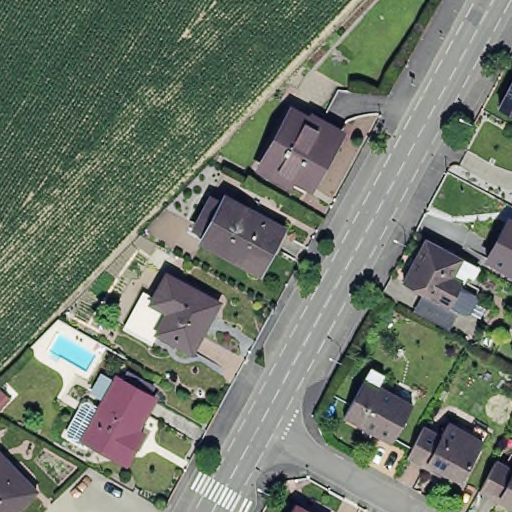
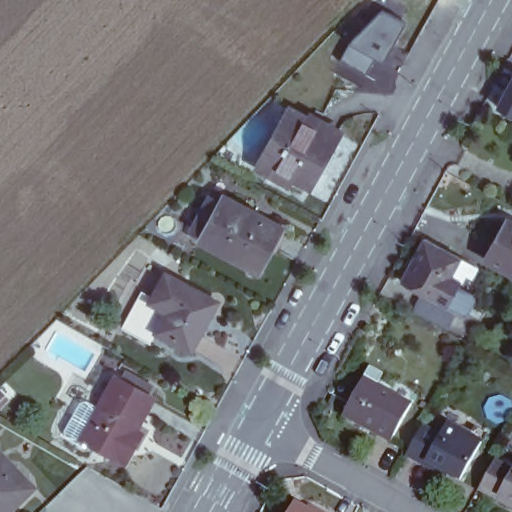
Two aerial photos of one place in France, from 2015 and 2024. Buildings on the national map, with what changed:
new [(402,19),(383,59),(372,56),(363,71),(335,58),(343,40),(383,7),(402,19)]
unchanged [(498,112),(512,86),(512,120),(498,112)]
unchanged [(291,176),(288,183),(274,176),(259,167),(291,110),(310,121),(312,117),(339,132),(309,186),(291,176)]
unchanged [(201,235),(204,230),(221,198),(224,193),(281,223),(258,266),(201,235)]
unchanged [(512,225),(512,276),(480,259),(502,219),(512,225)]
unchanged [(456,276),(466,282),(452,306),(407,281),(430,238),(465,257),(456,276)]
unchanged [(218,302),(191,352),(156,332),(166,312),(149,302),(152,297),(165,273),(218,302)]
unchanged [(91,423),(86,420),(110,376),(148,398),(131,430),(136,433),(131,443),(119,462),(81,441),(91,423)]
unchanged [(366,378),(380,385),(391,391),(389,397),(412,410),(391,447),(343,421),(364,383),(366,378)]
unchanged [(0,407),(0,391),(8,399),(0,407)]
unchanged [(423,426),(440,435),(447,423),(459,430),(462,425),(473,431),(475,427),(487,433),(461,481),(444,472),(441,476),(406,456),(423,426)]
unchanged [(0,456),(33,490),(10,512),(0,512),(0,456)]
unchanged [(512,467),(512,507),(483,491),(500,460),(512,467)]
unchanged [(299,497),(316,507),(318,503),(335,512),(291,512),(299,497)]

